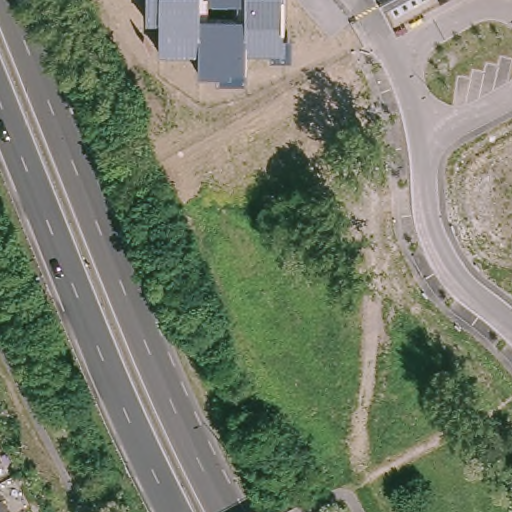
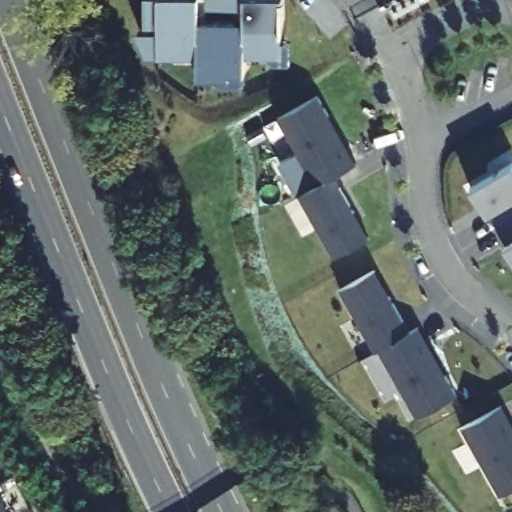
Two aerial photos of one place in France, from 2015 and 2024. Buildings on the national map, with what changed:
unchanged [(243,52),(244,74),(195,74),(194,54),(155,55),(155,0),(283,0),(283,53),(243,52)]
new [(352,167),(334,177),(333,176),(316,186),(279,118),(318,96),(329,116),(357,164),(352,167)]
new [(506,245),(510,242),(492,216),(473,186),(512,162),(512,254),(506,245)]
new [(367,240),(334,258),(299,195),(316,186),(333,176),(334,177),(355,212),(369,238),(367,240)]
new [(375,270),(390,296),(410,332),(378,350),(375,351),(340,289),(372,271),(375,270)]
new [(414,329),(419,327),(446,376),(457,396),(417,418),(378,350),(410,332),(414,329)]
new [(502,405),(512,424),(512,490),(501,496),(462,427),(497,407),(502,405)]
unchanged [(1,500),(8,512),(0,512),(0,495),(2,498),(1,500)]

